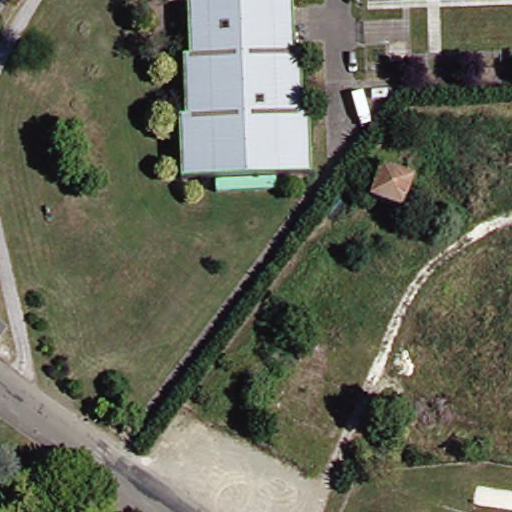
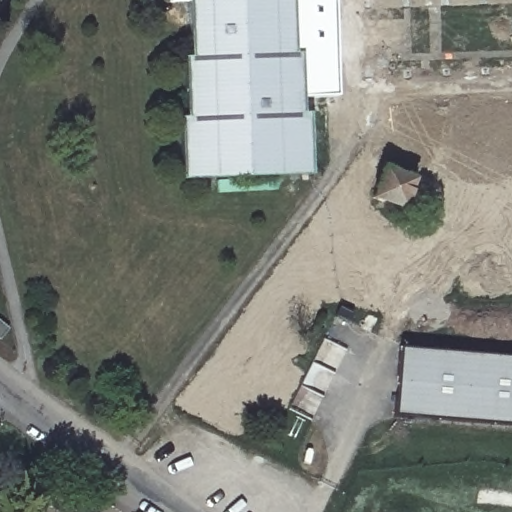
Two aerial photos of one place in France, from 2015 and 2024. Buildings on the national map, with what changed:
unchanged [(292,54),(295,114),(301,114),(304,175),(174,182),(171,120),(177,119),(175,59),(181,59),(179,4),(161,4),(161,0),(284,0),(286,54),(292,54)]
new [(304,97),(305,113),(311,113),(312,175),(304,175),(301,114),(295,114),(292,54),(286,54),(284,0),(336,0),(338,95),(304,97)]
unchanged [(371,199),(382,169),(412,180),(401,210),(371,199)]
unchanged [(9,329),(0,339),(0,322),(9,329)]
new [(399,349),(512,358),(512,430),(393,419),(399,349)]

